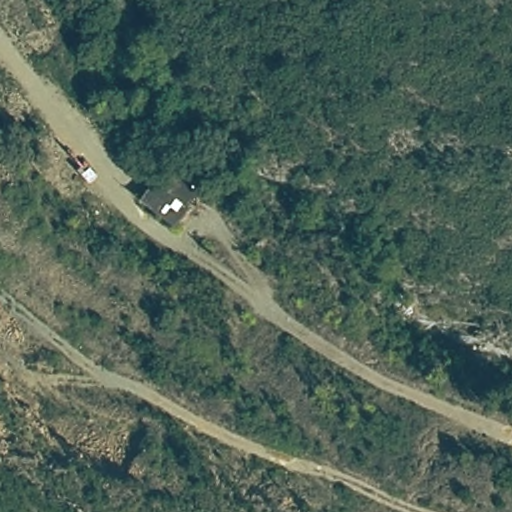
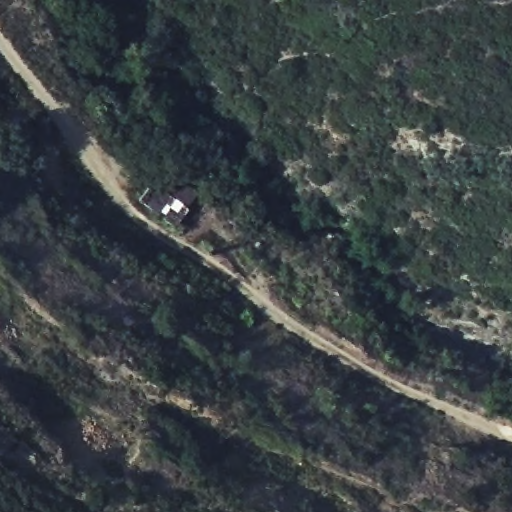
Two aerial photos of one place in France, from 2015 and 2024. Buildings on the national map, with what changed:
unchanged [(174,229),(137,204),(165,163),(202,189),(174,229)]

